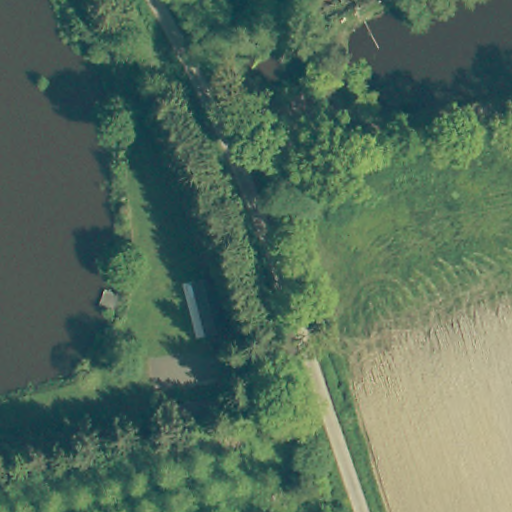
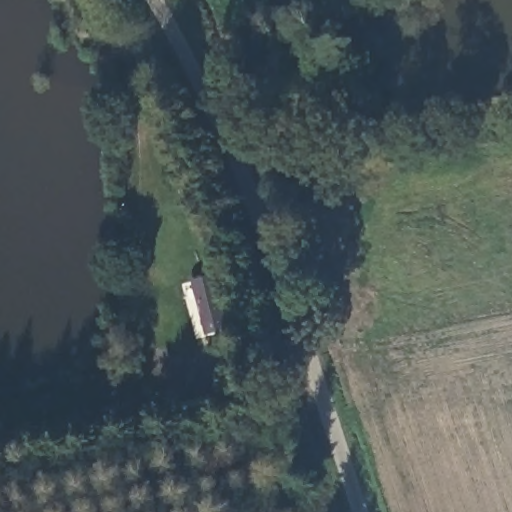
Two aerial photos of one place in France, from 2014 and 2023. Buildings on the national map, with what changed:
unchanged [(219,281),(230,333),(206,338),(195,286),(219,281)]
unchanged [(224,401),(228,418),(192,427),(188,409),(224,401)]

